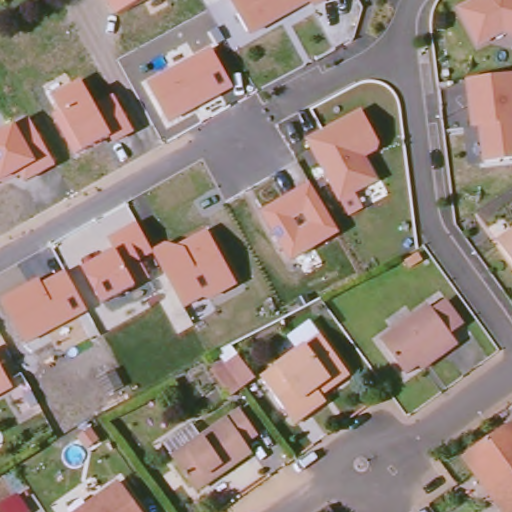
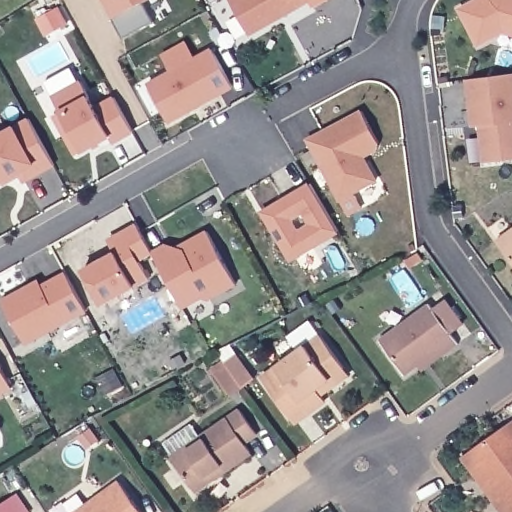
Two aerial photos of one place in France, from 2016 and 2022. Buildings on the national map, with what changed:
unchanged [(98,1),(98,0),(100,0),(98,1)]
unchanged [(115,18),(106,0),(147,0),(115,18)]
unchanged [(245,19),(233,0),(336,0),(319,10),(315,4),(262,36),(257,39),(245,19)]
unchanged [(480,47),(462,12),(485,0),(512,0),(512,36),(505,34),(480,47)]
unchanged [(210,49),(232,88),(167,123),(147,83),(210,49)]
unchanged [(95,104),(113,95),(135,133),(113,145),(111,140),(77,159),(52,116),(60,111),(52,95),(82,79),(95,104)]
unchanged [(512,163),(485,166),(482,141),(486,137),(485,129),(474,130),(468,84),(512,80),(512,163)]
unchanged [(362,114),(379,145),(377,154),(360,163),(363,170),(368,167),(377,184),(341,204),(308,143),(362,114)]
unchanged [(31,118),(54,166),(23,181),(20,176),(0,188),(0,133),(31,118)]
unchanged [(340,234),(289,263),(260,213),(309,183),(340,234)]
unchanged [(490,235),(512,219),(512,267),(510,264),(490,235)]
unchanged [(153,256),(141,263),(150,280),(105,304),(85,267),(115,251),(107,238),(135,222),(153,256)]
unchanged [(169,243),(177,247),(208,230),(237,284),(206,299),(205,296),(185,308),(155,251),(169,243)]
unchanged [(40,279),(43,284),(65,271),(87,312),(25,345),(2,299),(40,279)]
unchanged [(433,309),(446,300),(462,322),(450,332),(458,343),(443,353),(440,349),(407,374),(382,338),(429,303),(433,309)]
unchanged [(288,410),(260,371),(322,328),(344,357),(352,367),(322,389),(326,394),(310,407),(295,418),(288,410)]
unchanged [(234,409),(219,386),(230,380),(219,365),(236,356),(247,372),(253,383),(238,392),(245,402),(234,409)]
unchanged [(13,389),(0,396),(0,366),(13,389)]
unchanged [(240,413),(257,439),(243,449),(250,458),(216,480),(212,474),(190,486),(171,455),(240,413)]
unchanged [(504,496),(470,449),(512,418),(512,512),(508,512),(499,500),(504,496)]
unchanged [(144,512),(83,512),(124,483),(144,512)]

